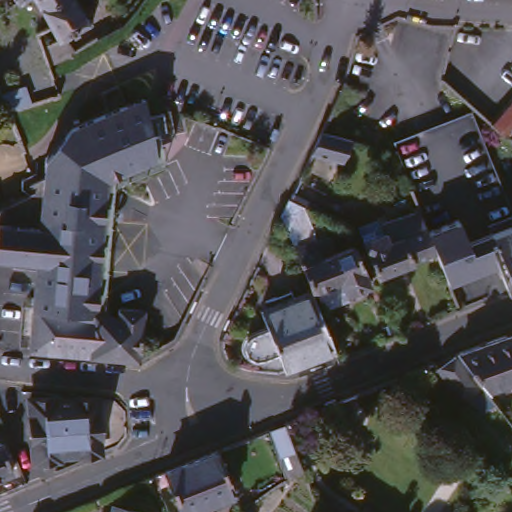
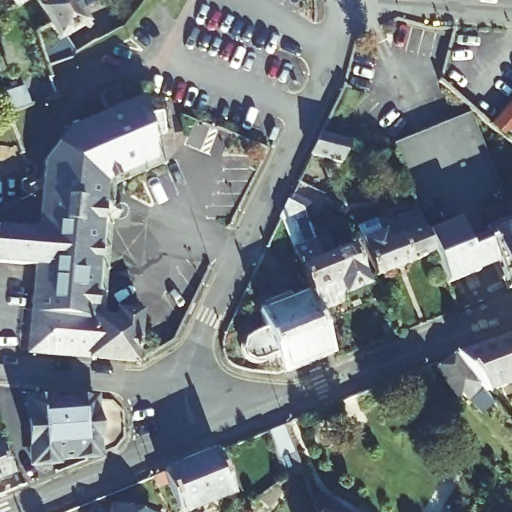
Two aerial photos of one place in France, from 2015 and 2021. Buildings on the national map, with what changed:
unchanged [(87,20),(88,22),(65,38),(70,54),(45,64),(43,64),(32,34),(34,33),(42,26),(47,24),(37,8),(32,0),(73,0),(76,4),(87,20)]
unchanged [(52,90),(47,92),(45,92),(42,83),(50,79),(52,90)]
unchanged [(503,140),(502,139),(487,126),(512,97),(512,130),(503,140)]
unchanged [(101,314),(97,357),(69,354),(35,351),(41,267),(0,263),(0,250),(2,228),(44,230),(49,188),(52,159),(55,155),(77,128),(101,118),(108,114),(147,98),(162,159),(114,178),(104,293),(102,314),(101,314)]
unchanged [(24,154),(0,163),(0,107),(4,105),(22,148),(24,154)]
unchanged [(354,139),(344,161),(312,151),(322,130),(354,139)]
unchanged [(302,209),(320,258),(349,245),(364,284),(342,294),(337,282),(307,294),(306,291),(277,218),(285,200),(302,209)]
unchanged [(357,240),(355,234),(350,223),(370,213),(372,218),(409,200),(421,229),(423,234),(430,251),(373,277),(357,240)]
unchanged [(506,289),(495,264),(484,269),(476,272),(467,276),(445,286),(441,278),(433,260),(430,251),(423,234),(455,220),(464,243),(483,235),(480,228),(507,217),(512,227),(512,287),(506,289)]
unchanged [(307,294),(315,314),(319,324),(330,352),(281,373),(275,358),(262,360),(258,361),(252,362),(247,361),(242,356),(240,352),(239,348),(241,342),(248,337),(254,334),(262,329),(257,313),(263,309),(267,308),(272,306),(288,299),(306,291),(307,294)]
unchanged [(123,315),(124,309),(149,312),(147,361),(97,357),(101,314),(102,314),(123,315)]
unchanged [(434,376),(451,352),(512,329),(512,381),(485,394),(480,389),(467,408),(434,376)]
unchanged [(85,456),(61,458),(60,444),(50,445),(51,461),(33,462),(29,402),(53,399),(53,403),(79,402),(95,400),(99,454),(85,456)]
unchanged [(295,456),(298,465),(282,472),(265,426),(282,420),(295,456)]
unchanged [(16,468),(0,475),(0,439),(2,438),(16,468)]
unchanged [(189,512),(182,512),(171,484),(162,488),(157,476),(167,473),(218,452),(234,495),(189,512)]
unchanged [(112,507),(133,512),(111,512),(112,507)]

